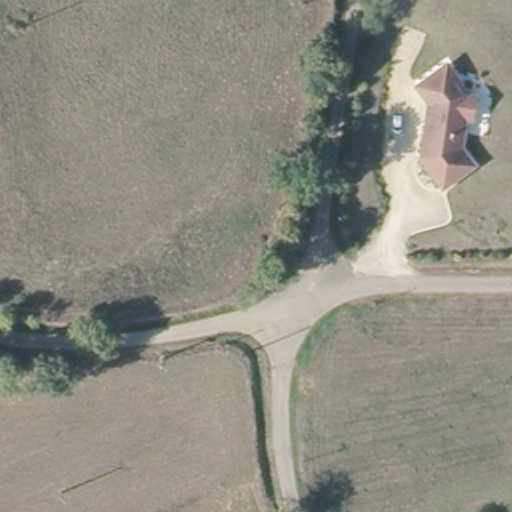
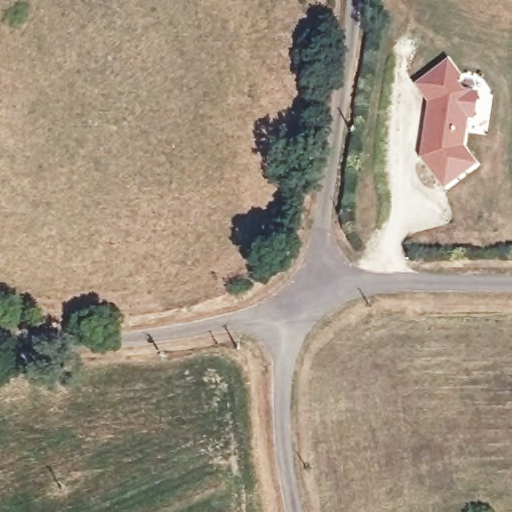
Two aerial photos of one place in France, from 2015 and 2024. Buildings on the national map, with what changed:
unchanged [(448,65),(456,80),(452,84),(459,96),(473,99),(471,121),(464,120),(460,151),(471,168),(442,189),(421,161),(430,104),(418,86),(448,65)]

